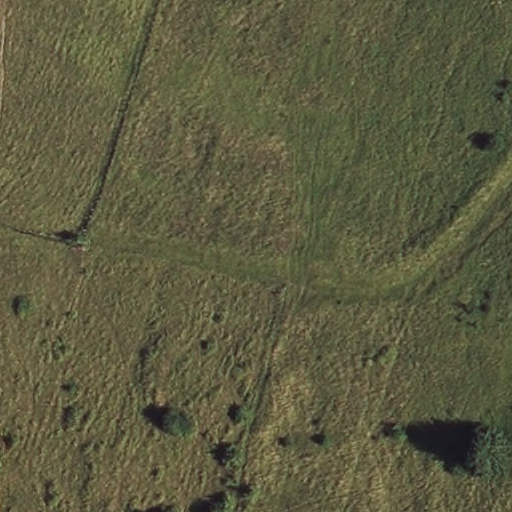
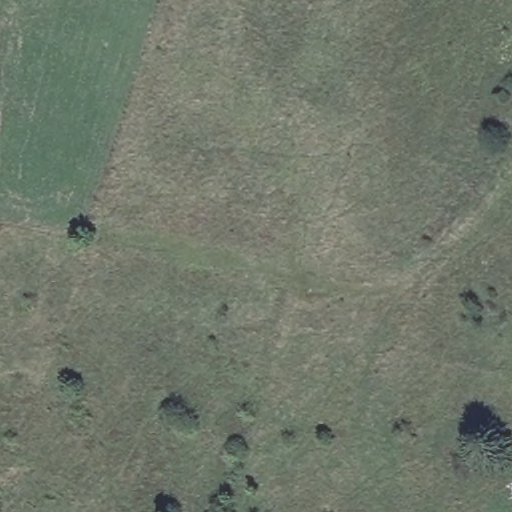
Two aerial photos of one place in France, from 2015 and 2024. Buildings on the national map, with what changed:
[]

